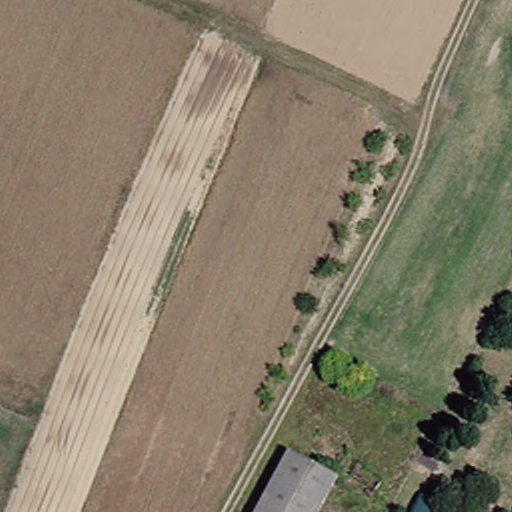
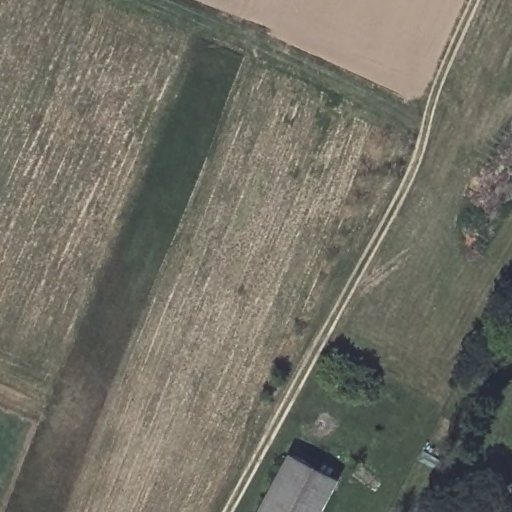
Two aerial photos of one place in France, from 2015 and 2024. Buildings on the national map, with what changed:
unchanged [(328,481),(312,512),(252,512),(282,457),(328,481)]
unchanged [(449,512),(412,512),(420,497),(449,512)]

